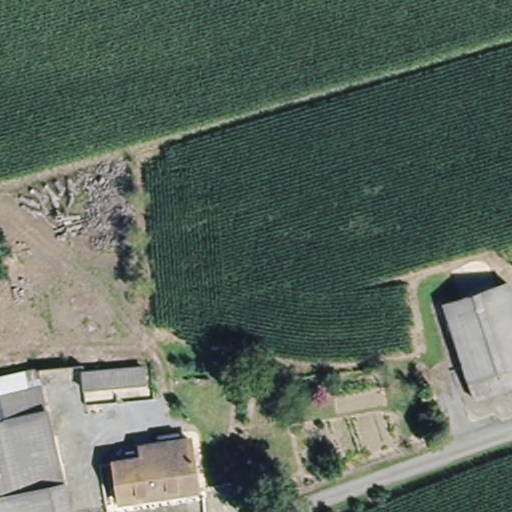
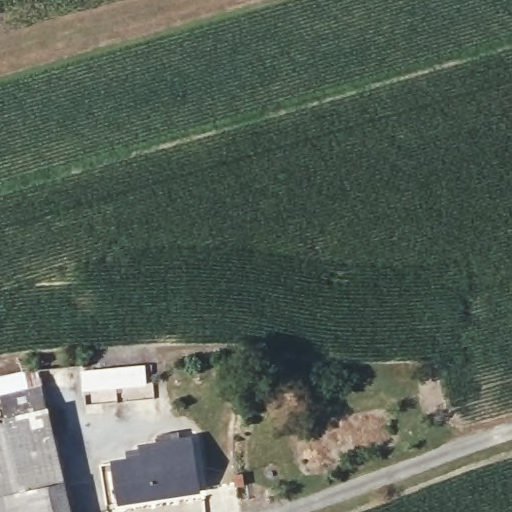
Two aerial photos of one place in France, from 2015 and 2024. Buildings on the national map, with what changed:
demolished [(512,295),(512,393),(477,404),(445,301),(509,285),(512,295)]
unchanged [(147,370),(147,390),(87,394),(82,372),(147,370)]
unchanged [(0,512),(0,380),(40,372),(73,512),(0,512)]
unchanged [(204,495),(114,511),(106,465),(134,461),(132,446),(189,437),(204,495)]

